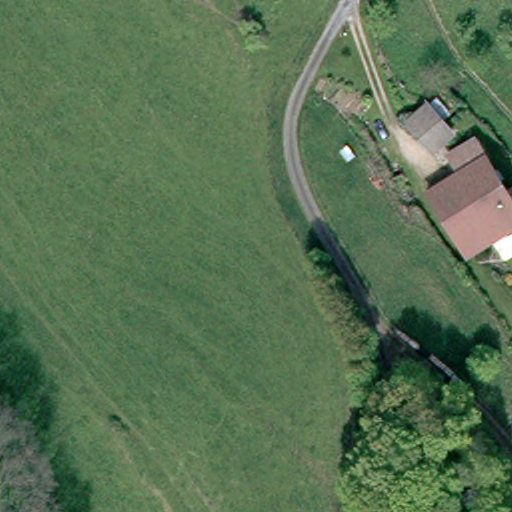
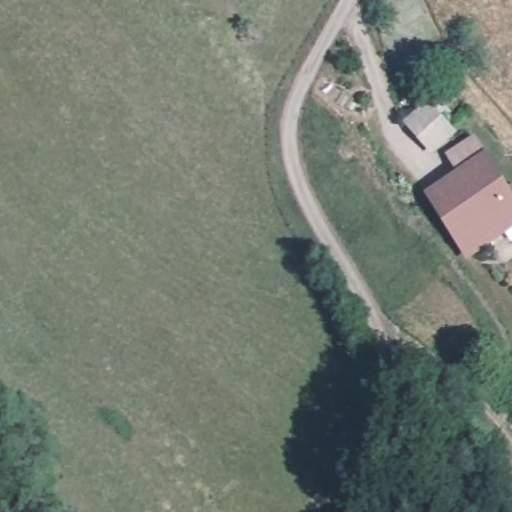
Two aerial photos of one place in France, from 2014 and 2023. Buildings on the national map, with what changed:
unchanged [(433,112),(450,137),(433,148),(416,123),(433,112)]
unchanged [(448,158),(476,144),(504,191),(512,186),(512,203),(511,203),(512,204),(512,230),(466,258),(428,195),(458,178),(448,158)]
unchanged [(405,213),(388,182),(390,181),(399,178),(414,207),(405,213)]

